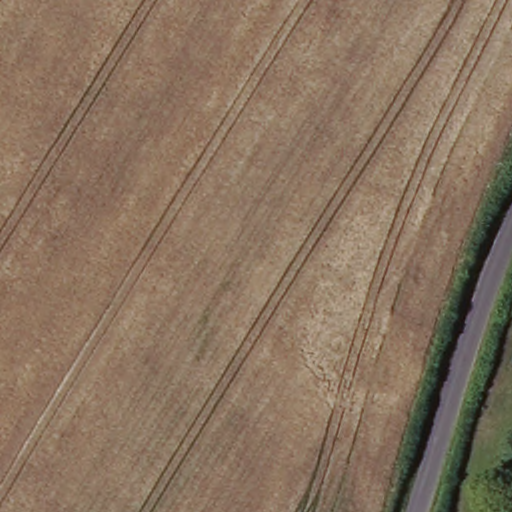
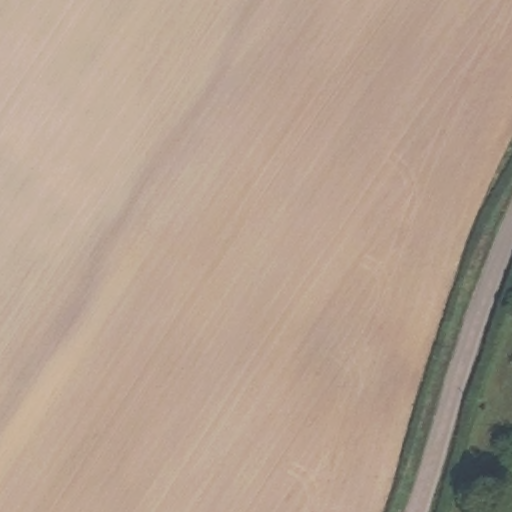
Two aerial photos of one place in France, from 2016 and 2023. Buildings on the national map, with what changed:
[]

